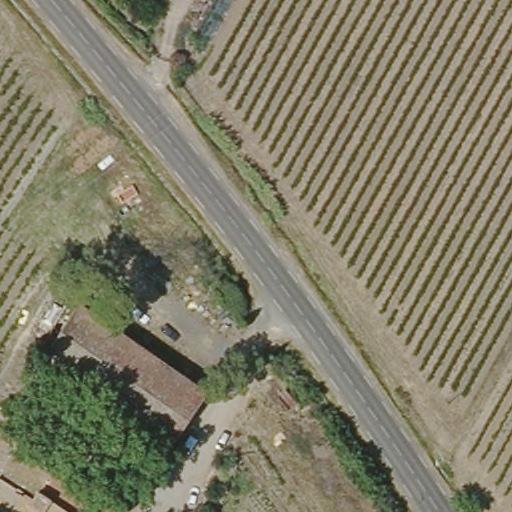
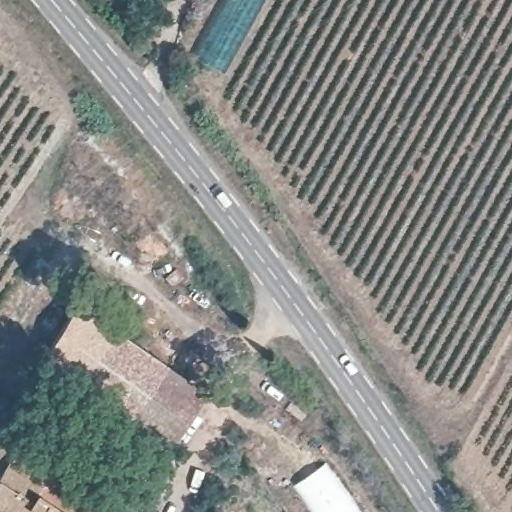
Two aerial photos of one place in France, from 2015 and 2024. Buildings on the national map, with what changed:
unchanged [(210,383),(172,442),(65,371),(58,382),(38,369),(81,300),(210,383)]
unchanged [(131,512),(75,512),(44,491),(38,497),(0,472),(0,435),(7,425),(133,509),(131,512)]
new [(293,487),(327,464),(359,512),(310,512),(293,487)]
unchanged [(0,500),(0,472),(38,497),(44,491),(75,512),(18,512),(0,500)]

